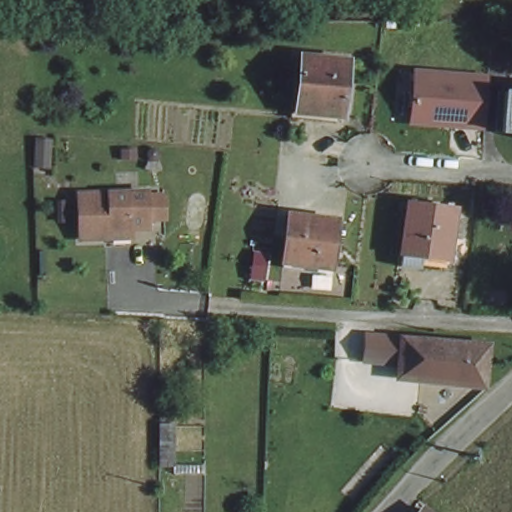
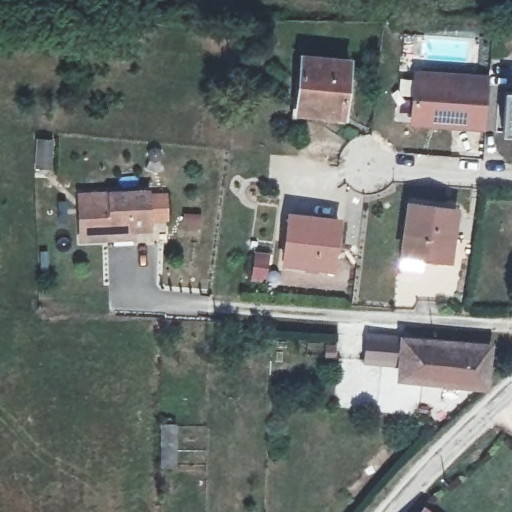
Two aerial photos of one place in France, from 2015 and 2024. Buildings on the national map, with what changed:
unchanged [(344,62),(338,123),(319,121),(319,114),(293,112),(298,59),(344,62)]
unchanged [(491,65),(481,152),(448,150),(451,122),(407,121),(410,63),(491,65)]
unchanged [(503,133),(505,91),(512,91),(512,134),(503,133)]
unchanged [(105,235),(75,236),(73,192),(142,190),(142,196),(158,197),(157,220),(143,219),(143,226),(123,226),(123,235),(105,235)]
unchanged [(448,258),(402,252),(407,208),(454,214),(448,258)]
unchanged [(333,267),(287,262),(292,215),(338,220),(333,267)]
unchanged [(479,381),(393,376),(395,337),(481,342),(479,381)]
unchanged [(174,462),(160,462),(160,422),(175,422),(174,462)]
unchanged [(429,512),(421,512),(424,509),(429,512)]

